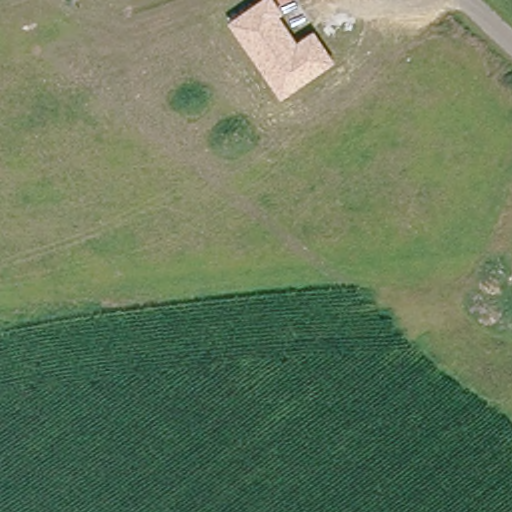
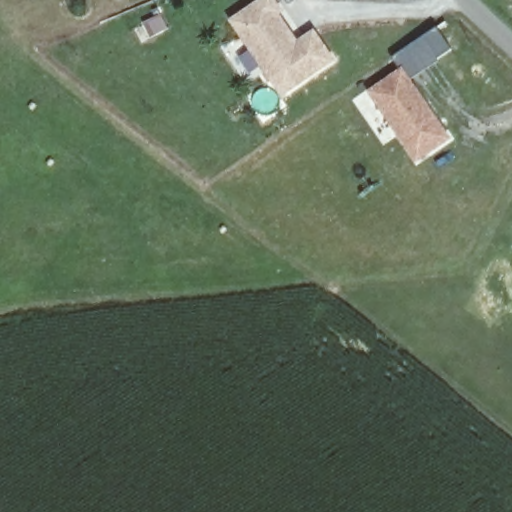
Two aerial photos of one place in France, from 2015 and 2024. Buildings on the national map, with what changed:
unchanged [(281,17),(298,41),(315,29),(337,61),(282,100),(228,21),(260,0),(276,0),(285,14),(281,17)]
new [(451,140),(417,161),(369,91),(403,69),(451,140)]

